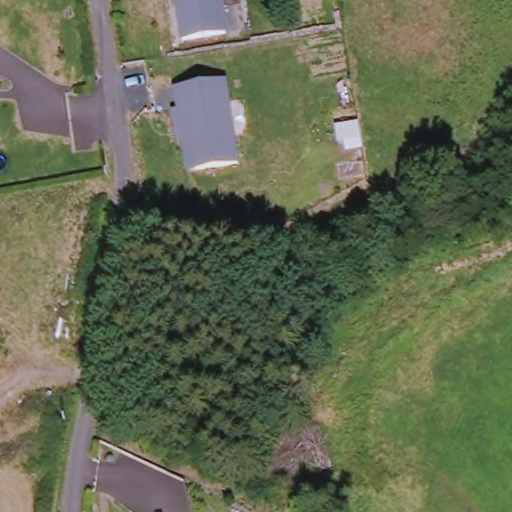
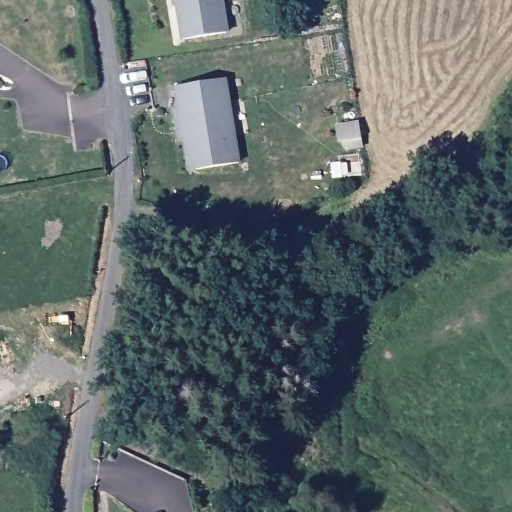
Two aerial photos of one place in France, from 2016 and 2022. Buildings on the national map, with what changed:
unchanged [(228,29),(184,35),(179,0),(176,0),(223,0),(228,29)]
unchanged [(184,136),(179,137),(174,106),(179,105),(176,83),(224,75),(239,158),(196,165),(189,166),(184,136)]

